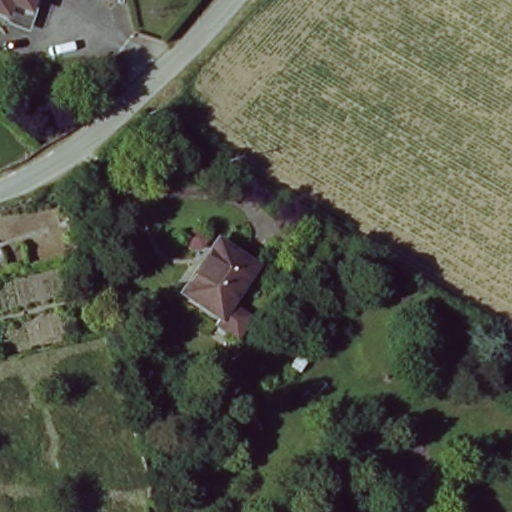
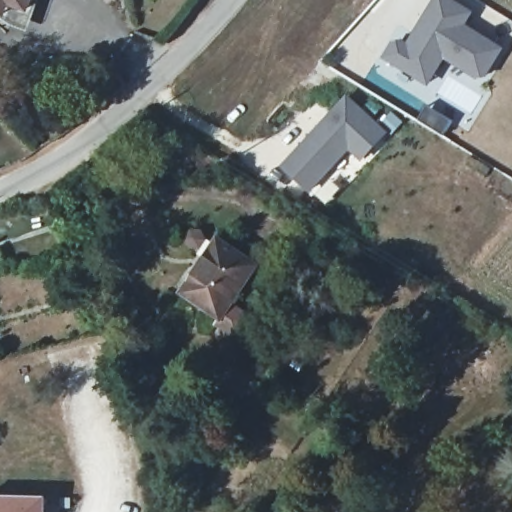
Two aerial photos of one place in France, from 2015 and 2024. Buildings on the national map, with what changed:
unchanged [(0,0),(36,0),(30,18),(12,11),(7,22),(0,20),(0,0)]
new [(465,22),(503,47),(488,72),(475,77),(443,59),(428,85),(382,57),(394,37),(408,37),(431,0),(457,0),(473,10),(465,22)]
new [(390,132),(360,162),(348,151),(308,192),(280,165),(347,95),(390,132)]
unchanged [(13,269),(0,273),(0,241),(3,240),(13,269)]
unchanged [(216,242),(257,268),(230,308),(250,321),(237,342),(215,328),(220,322),(180,295),(216,242)]
new [(47,512),(0,512),(0,495),(47,495),(47,512)]

